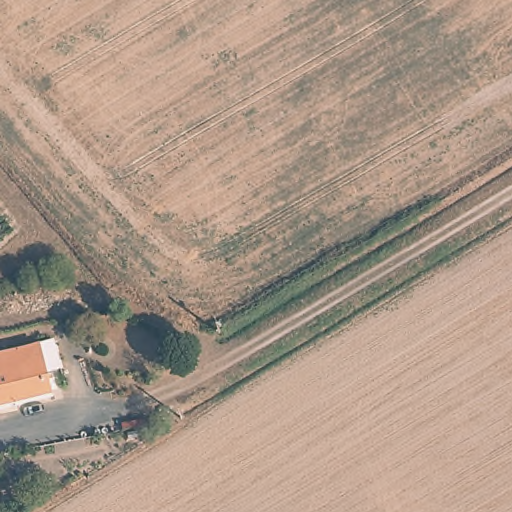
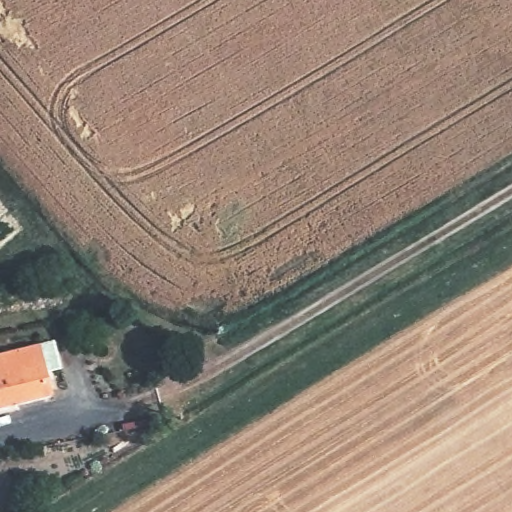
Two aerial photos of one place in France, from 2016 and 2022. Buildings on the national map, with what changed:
unchanged [(64,371),(49,374),(55,399),(0,411),(0,354),(42,344),(56,342),(64,371)]

